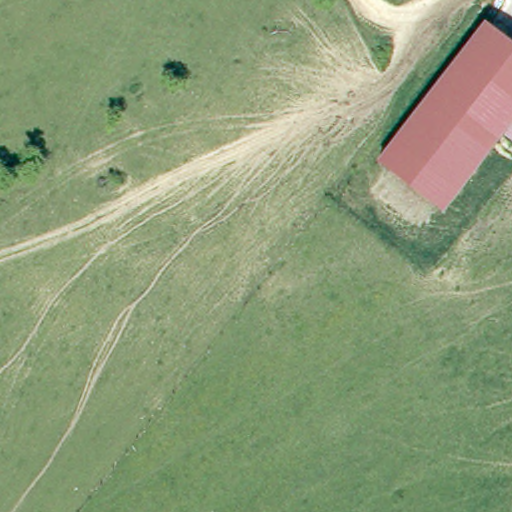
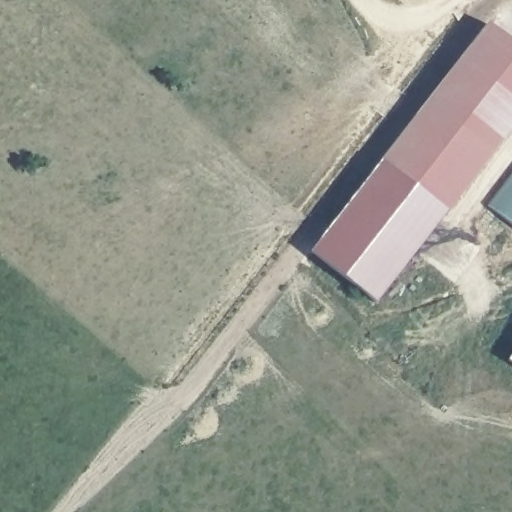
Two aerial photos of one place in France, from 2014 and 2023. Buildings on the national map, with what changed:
unchanged [(444,212),(381,164),(488,25),(512,44),(512,124),(444,212)]
new [(375,302),(311,252),(381,164),(444,212),(375,302)]
new [(487,205),(512,172),(512,226),(487,205)]
new [(507,360),(512,352),(512,363),(507,360)]

